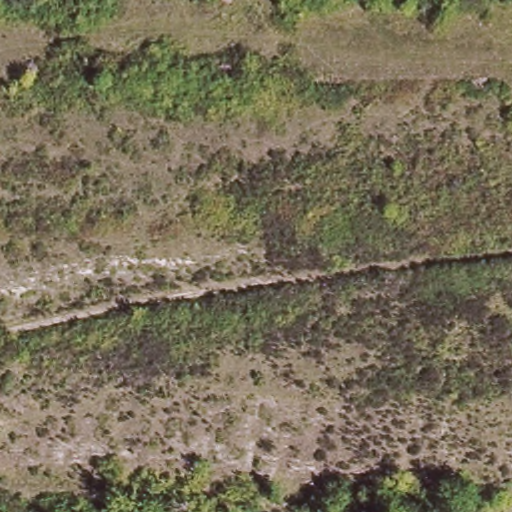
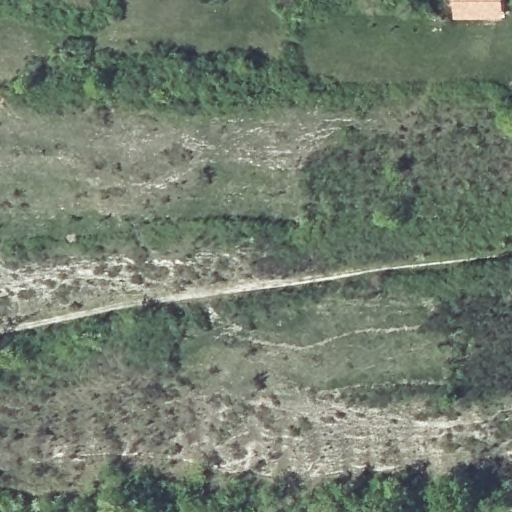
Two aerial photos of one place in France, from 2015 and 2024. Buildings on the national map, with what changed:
new [(507,0),(506,20),(457,19),(458,0),(507,0)]

